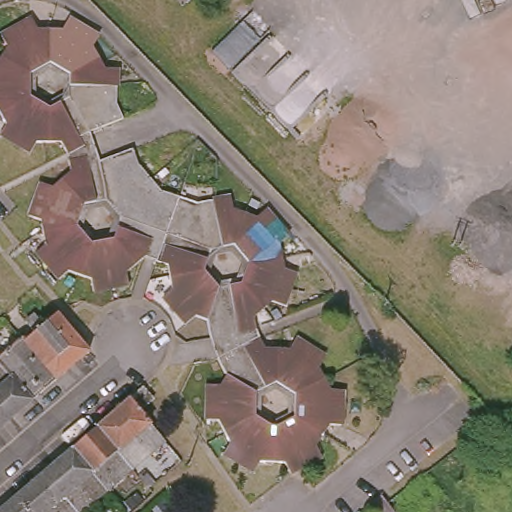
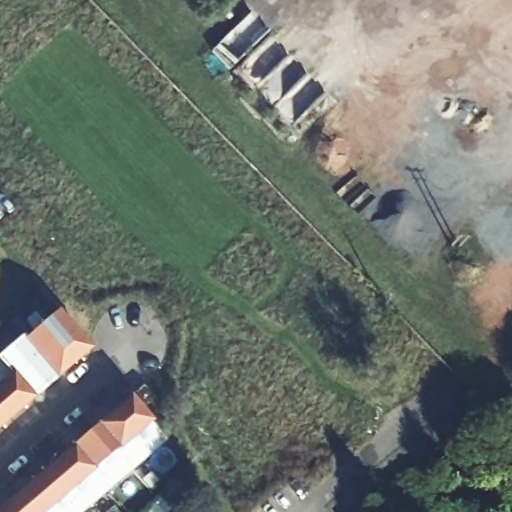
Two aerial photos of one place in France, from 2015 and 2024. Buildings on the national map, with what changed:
demolished [(162,282),(158,270),(138,259),(120,274),(122,284),(86,292),(85,282),(60,272),(51,280),(25,252),(35,243),(30,219),(22,214),(28,183),(40,187),(58,169),(57,159),(52,144),(27,140),(18,149),(0,134),(0,49),(8,38),(5,27),(36,12),(42,25),(67,28),(73,19),(102,42),(95,51),(107,76),(117,77),(112,108),(127,160),(150,185),(187,202),(220,192),(225,205),(245,210),(253,202),(254,203),(162,282)]
demolished [(195,316),(185,324),(159,297),(165,288),(162,282),(254,203),(282,228),(274,236),(280,258),(215,315),(200,327),(195,316)]
demolished [(280,261),(293,265),(284,297),(274,297),(255,313),(262,343),(285,348),(292,340),(322,365),(315,372),(322,397),(334,399),(328,437),(322,435),(301,453),(304,463),(270,475),(265,463),(239,458),(232,466),(205,443),(212,436),(205,411),(194,407),(200,376),(209,378),(217,367),(200,327),(215,315),(280,258),(280,261)]
unchanged [(89,348),(55,377),(24,341),(57,312),(89,348)]
unchanged [(24,341),(55,377),(33,396),(32,397),(0,361),(24,341)]
unchanged [(0,361),(32,397),(5,421),(0,415),(0,361)]
unchanged [(142,386),(153,399),(140,409),(130,397),(142,386)]
unchanged [(128,467),(94,427),(127,398),(162,438),(128,467)]
unchanged [(5,421),(0,424),(0,415),(5,421)]
unchanged [(106,487),(72,446),(94,427),(128,467),(106,487)]
unchanged [(43,471),(72,446),(106,487),(77,511),(43,471)]
unchanged [(43,471),(77,511),(76,512),(27,512),(13,496),(43,471)]
unchanged [(13,496),(27,512),(0,512),(0,507),(12,497),(13,496)]
unchanged [(386,512),(374,512),(383,508),(386,512)]

